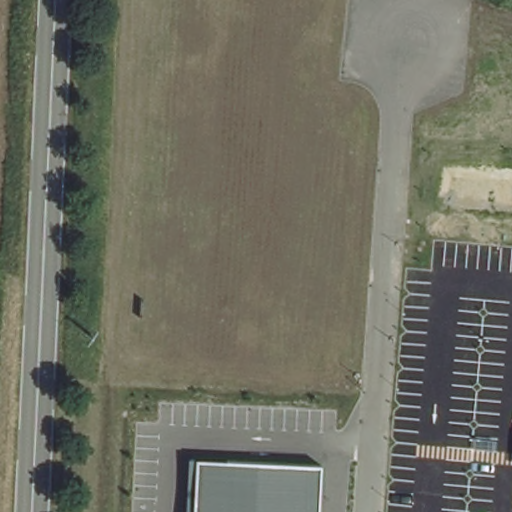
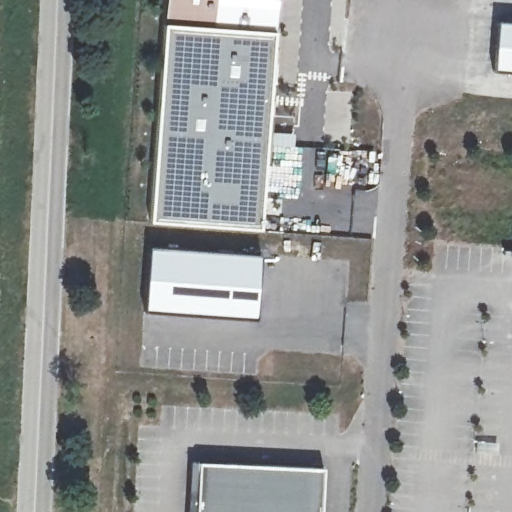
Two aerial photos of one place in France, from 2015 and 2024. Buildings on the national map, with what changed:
new [(164,0),(278,0),(276,30),(163,21),(164,0)]
new [(163,21),(276,30),(269,130),(266,194),(263,231),(147,223),(163,21)]
new [(496,22),(512,24),(512,73),(492,71),(496,22)]
new [(255,320),(144,311),(149,247),(259,256),(255,320)]
unchanged [(319,512),(196,512),(198,463),(321,468),(319,512)]

